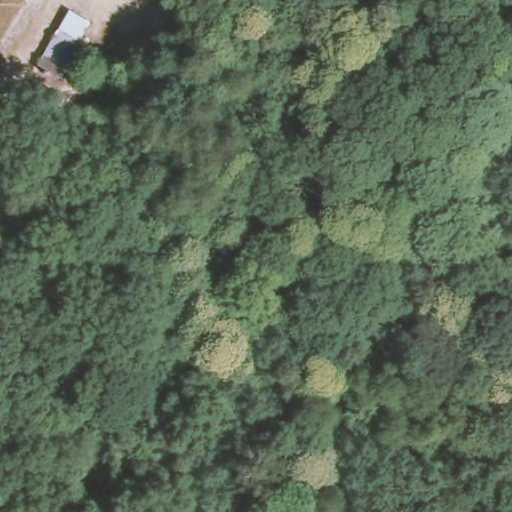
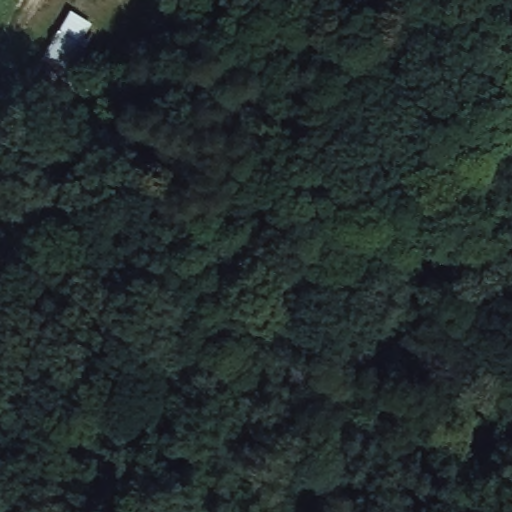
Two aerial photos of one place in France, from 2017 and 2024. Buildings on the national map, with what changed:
unchanged [(90,41),(68,75),(42,57),(61,19),(90,41)]

